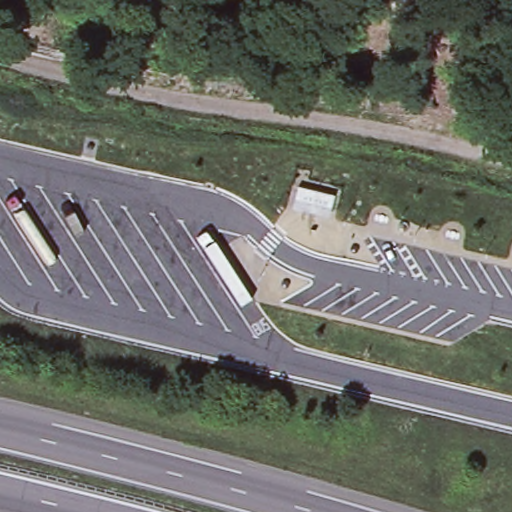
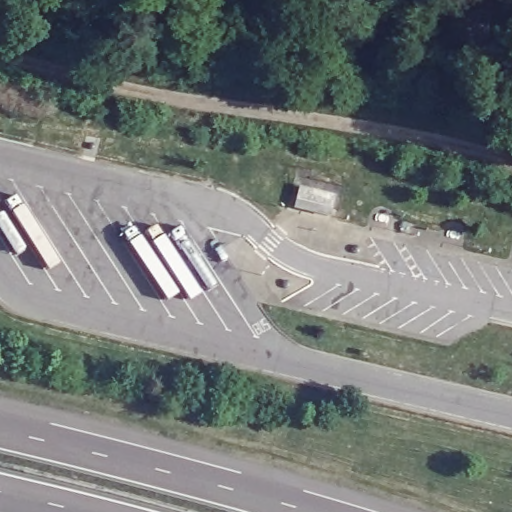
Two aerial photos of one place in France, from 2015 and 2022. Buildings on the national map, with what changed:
unchanged [(309,192),(349,200),(337,236),(298,227),(309,192)]

